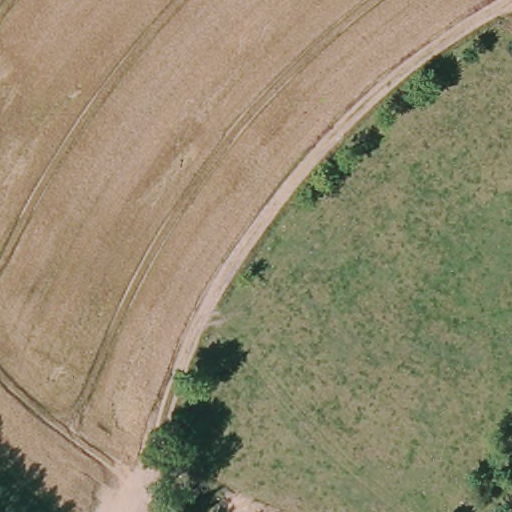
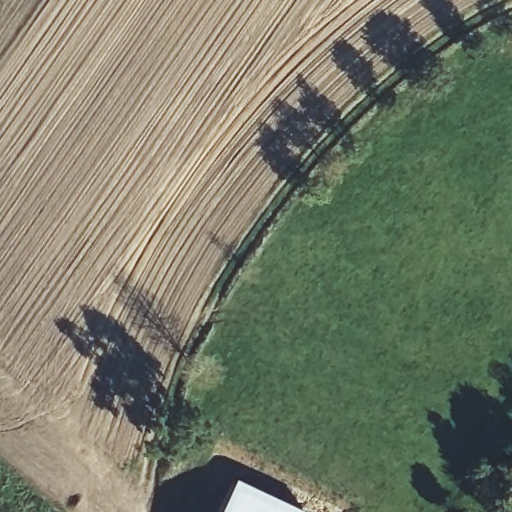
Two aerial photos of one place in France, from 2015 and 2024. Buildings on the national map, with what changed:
new [(236,483),(294,512),(221,512),(236,483)]

